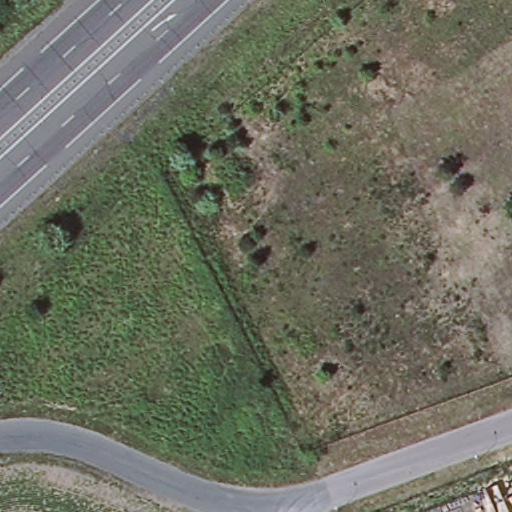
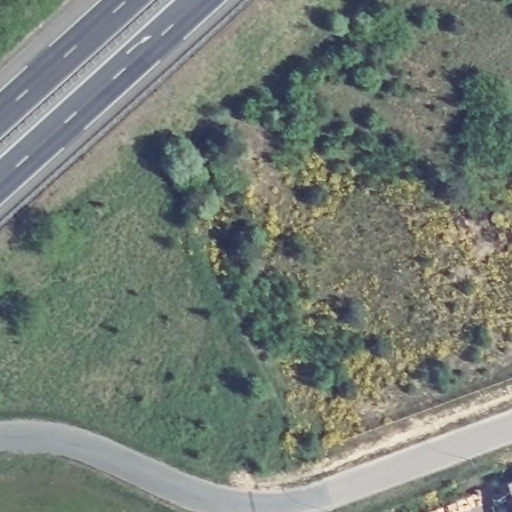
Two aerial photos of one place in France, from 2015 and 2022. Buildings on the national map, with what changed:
unchanged [(512,487),(512,498),(509,488),(512,487)]

